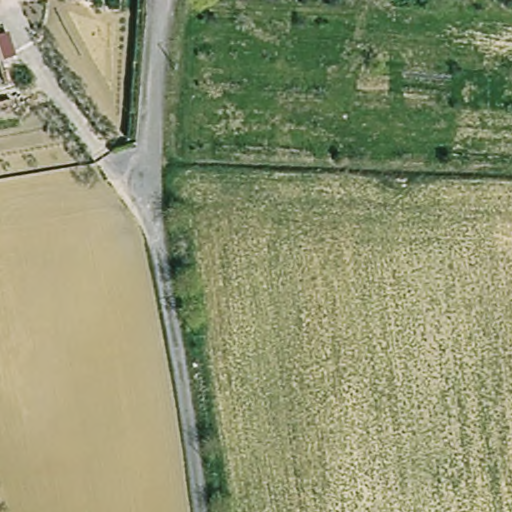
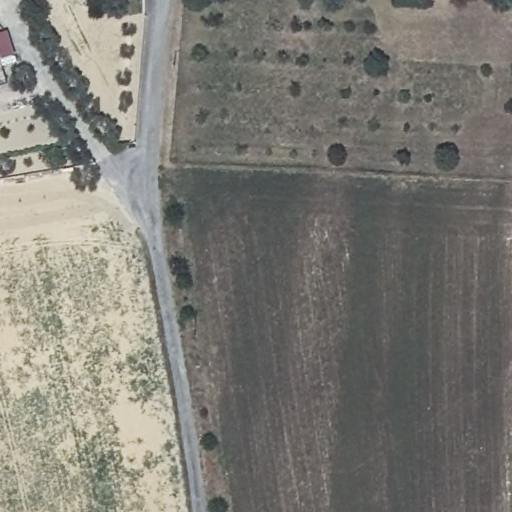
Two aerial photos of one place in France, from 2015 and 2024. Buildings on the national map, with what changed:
unchanged [(6,60),(0,62),(0,41),(6,60)]

